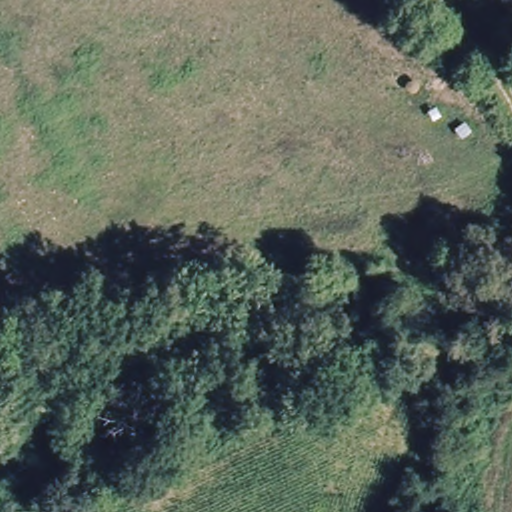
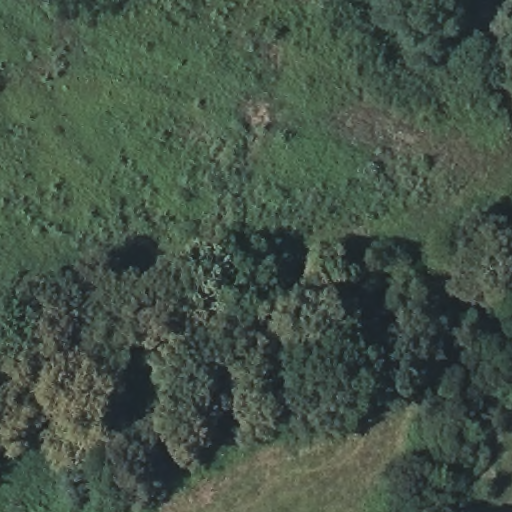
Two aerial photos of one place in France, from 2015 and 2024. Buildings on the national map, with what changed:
unchanged [(470,257),(472,282),(427,285),(425,261),(470,257)]

